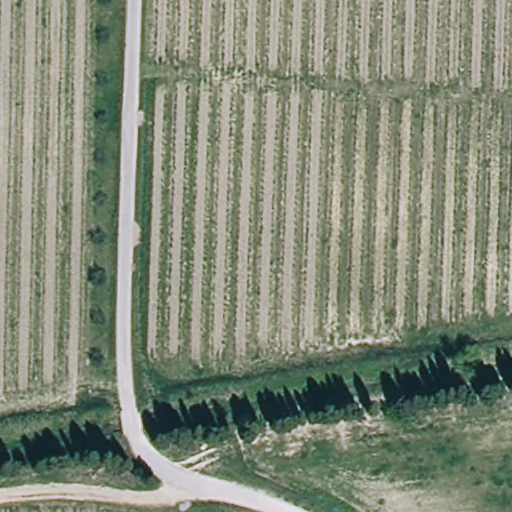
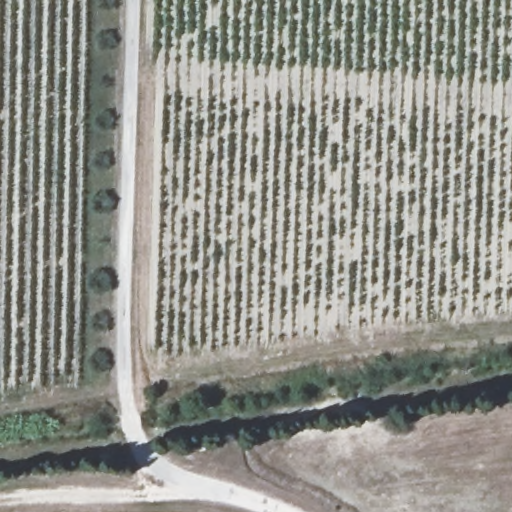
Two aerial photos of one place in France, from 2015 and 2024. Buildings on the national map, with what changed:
[]

